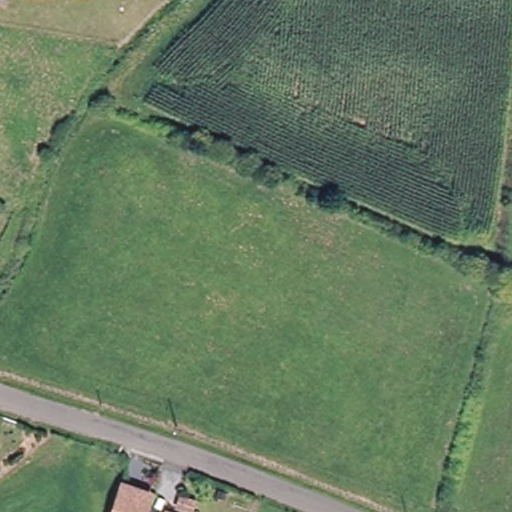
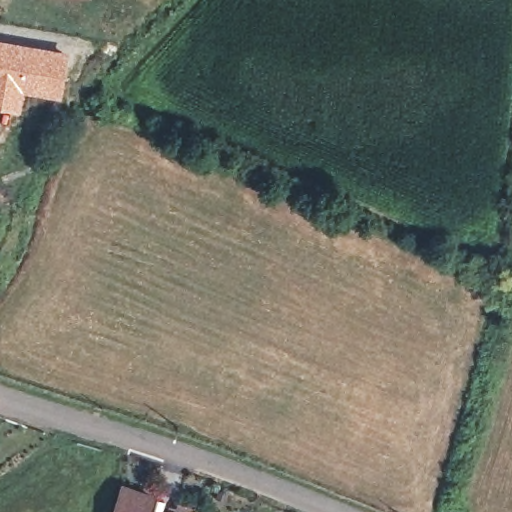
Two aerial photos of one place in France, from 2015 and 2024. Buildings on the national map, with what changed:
new [(27,42),(69,51),(62,97),(25,93),(21,110),(0,106),(0,38),(27,42)]
unchanged [(151,496),(145,512),(117,512),(126,487),(151,496)]
unchanged [(180,510),(187,512),(168,512),(170,507),(180,510)]

